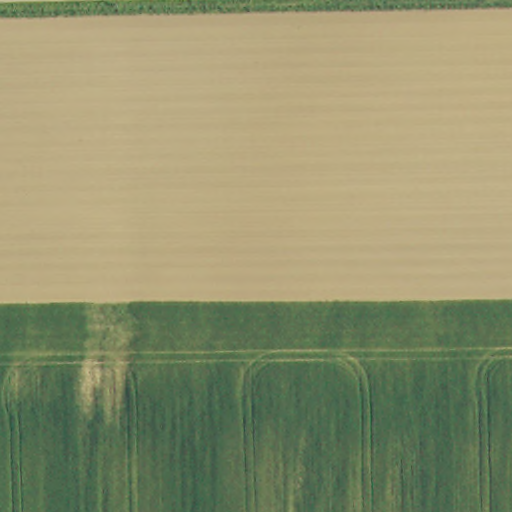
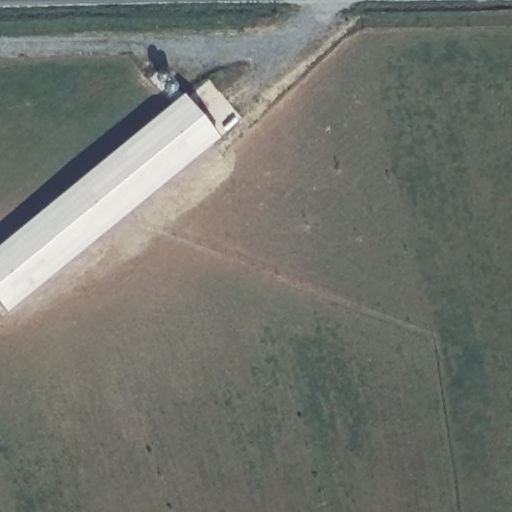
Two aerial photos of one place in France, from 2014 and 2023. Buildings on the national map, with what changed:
new [(178,94),(217,140),(5,317),(0,311),(0,242),(178,94)]

